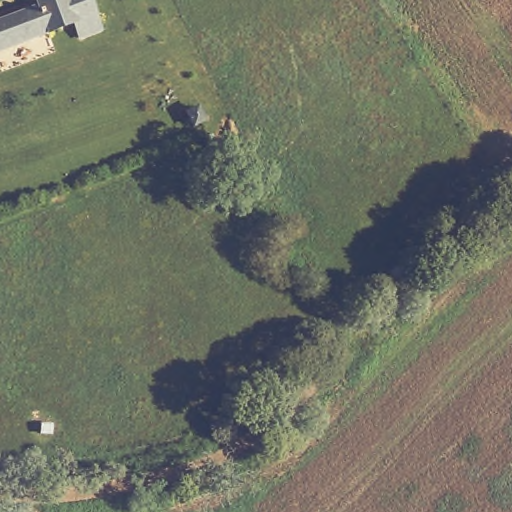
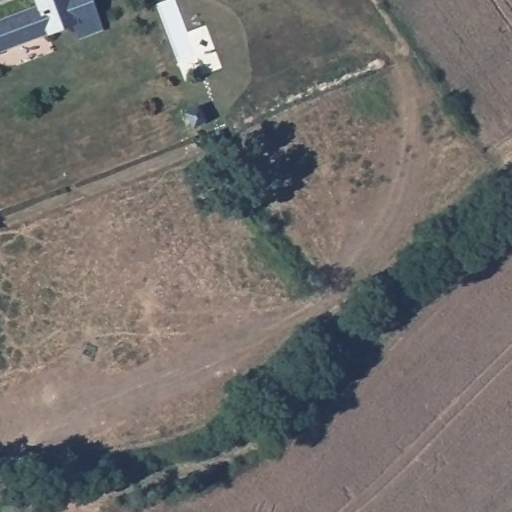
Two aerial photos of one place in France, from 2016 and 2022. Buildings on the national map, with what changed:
unchanged [(0,56),(0,14),(31,2),(30,0),(98,0),(104,13),(114,36),(86,48),(76,24),(0,56)]

